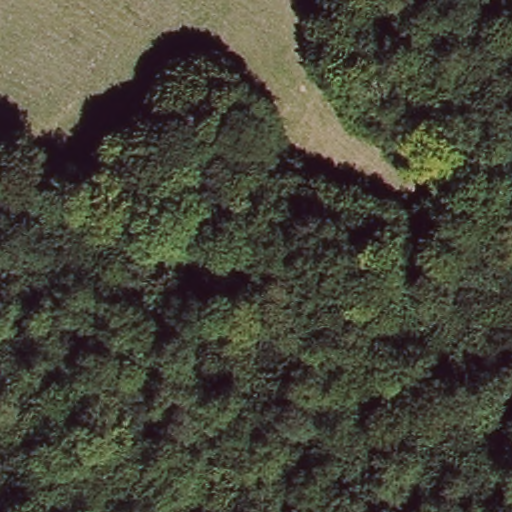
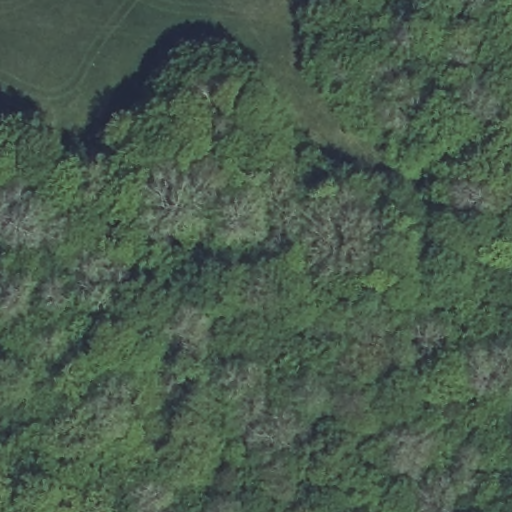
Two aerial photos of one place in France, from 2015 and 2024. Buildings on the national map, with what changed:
[]

